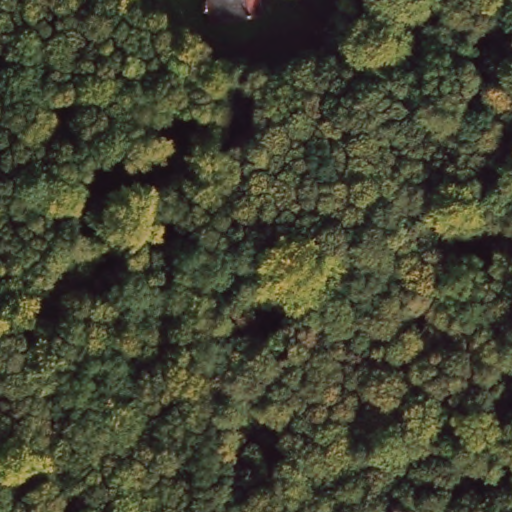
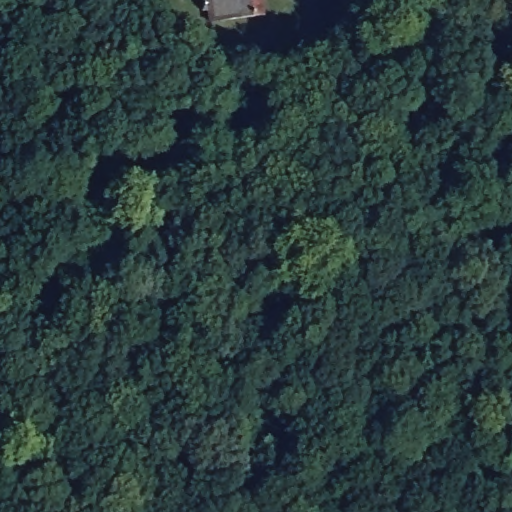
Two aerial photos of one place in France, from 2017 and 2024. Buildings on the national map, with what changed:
unchanged [(207,15),(207,0),(262,0),(262,13),(207,15)]

